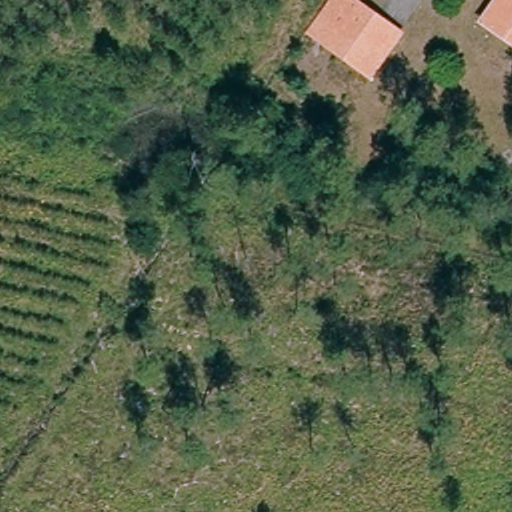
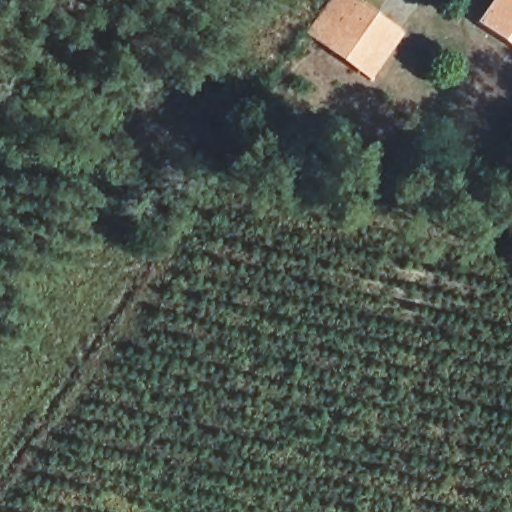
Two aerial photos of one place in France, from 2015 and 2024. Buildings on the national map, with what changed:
unchanged [(312,42),(321,30),(342,0),(344,0),(371,17),(350,50),(339,42),(330,55),(312,42)]
unchanged [(500,0),(512,0),(512,41),(484,21),(500,0)]
unchanged [(393,31),(370,65),(350,50),(371,17),(393,31)]

